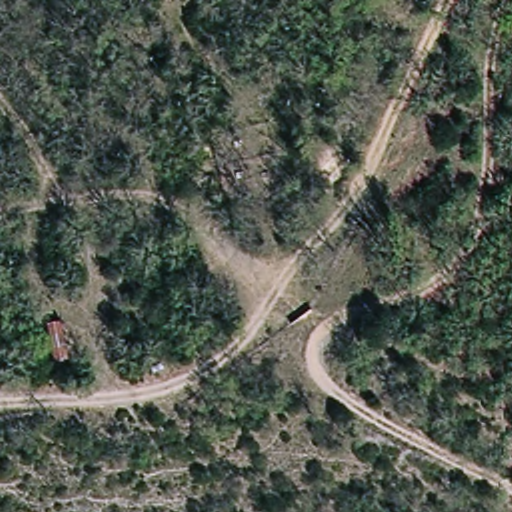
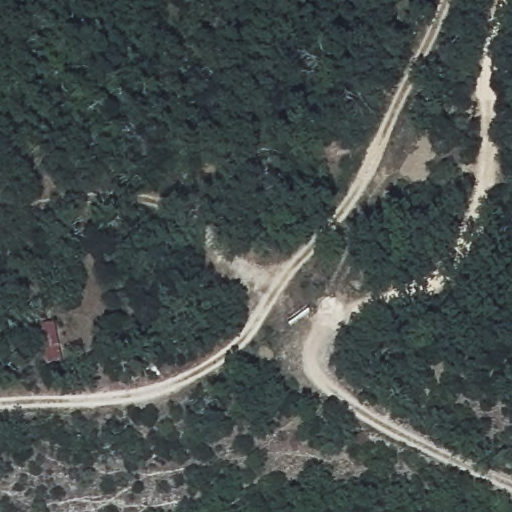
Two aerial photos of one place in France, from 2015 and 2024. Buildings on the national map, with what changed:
unchanged [(53,323),(63,365),(47,368),(36,326),(53,323)]

